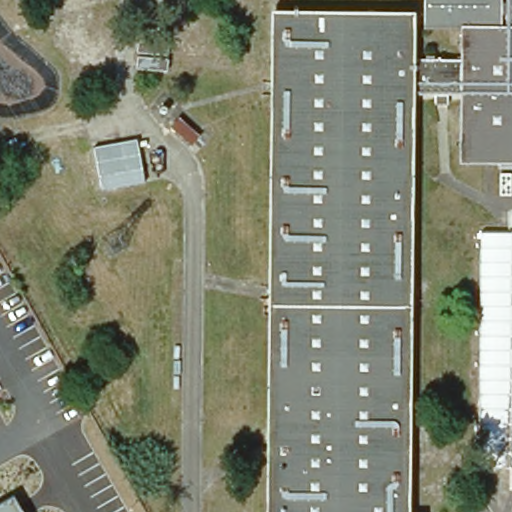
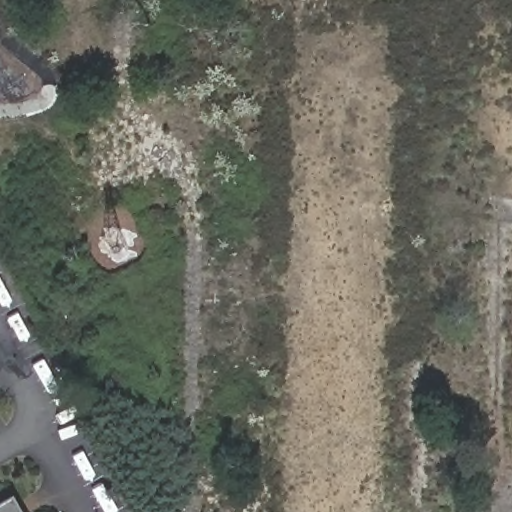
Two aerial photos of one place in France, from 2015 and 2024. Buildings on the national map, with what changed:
demolished [(408,64),(466,64),(466,33),(425,32),(425,0),(500,0),(500,34),(506,34),(506,0),(512,0),(512,163),(464,162),(465,99),(407,99),(404,512),(272,512),(277,20),(409,21),(408,64)]
demolished [(175,22),(174,71),(142,70),(144,22),(175,22)]
demolished [(122,146),(130,181),(92,189),(84,153),(122,146)]
unchanged [(24,512),(0,512),(0,502),(14,494),(24,512)]

